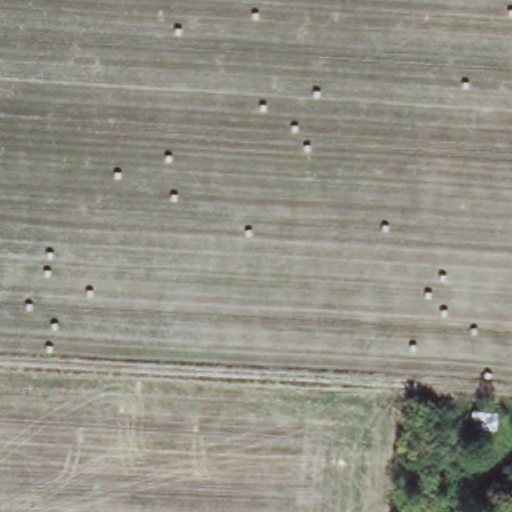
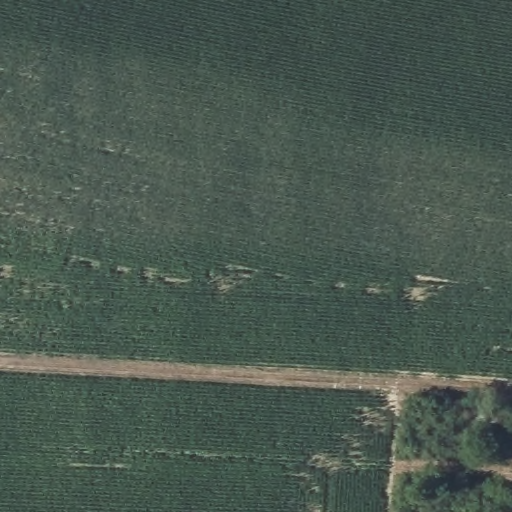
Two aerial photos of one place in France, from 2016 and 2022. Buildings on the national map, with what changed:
unchanged [(501,405),(498,434),(475,431),(476,419),(475,402),(501,405)]

